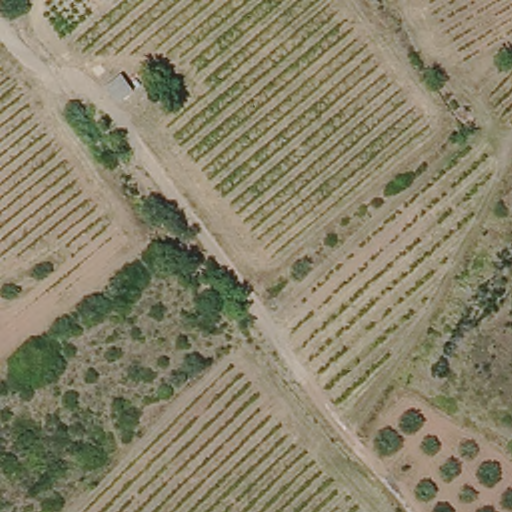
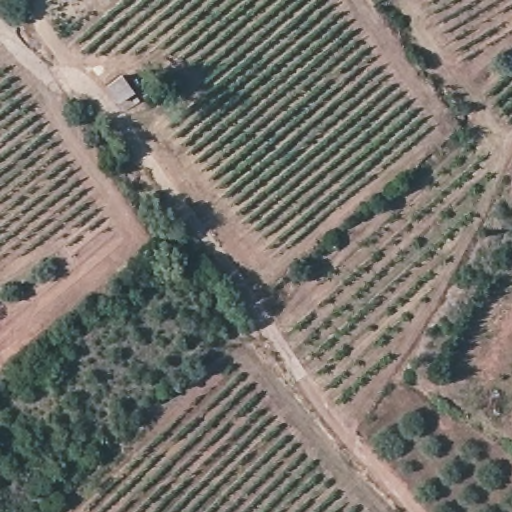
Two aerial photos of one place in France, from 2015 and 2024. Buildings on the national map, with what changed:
unchanged [(112,84),(129,71),(140,83),(122,97),(112,84)]

